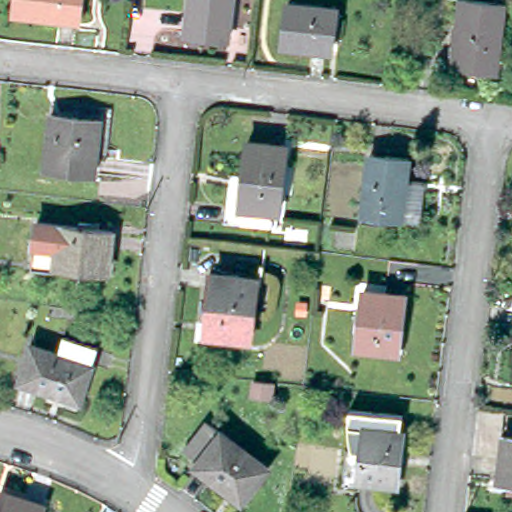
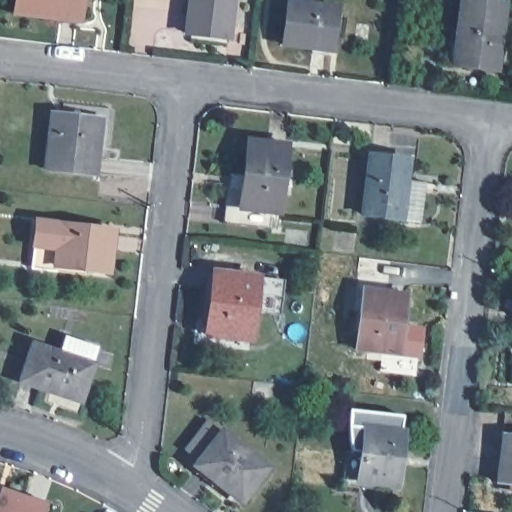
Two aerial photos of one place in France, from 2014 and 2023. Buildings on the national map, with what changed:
unchanged [(80,19),(14,11),(15,0),(82,0),(80,19)]
unchanged [(230,38),(186,32),(189,0),(234,0),(230,38)]
unchanged [(504,3),(496,69),(454,64),(461,0),(483,0),(504,3)]
unchanged [(338,7),(333,49),(282,43),(288,1),(338,7)]
unchanged [(53,112),(112,118),(107,156),(97,155),(95,174),(45,167),(53,112)]
unchanged [(279,212),(273,211),(271,227),(218,220),(225,172),(243,174),(248,139),(287,144),(279,212)]
unchanged [(408,163),(406,184),(425,187),(421,224),(400,221),(397,222),(362,218),(369,159),(408,163)]
unchanged [(49,243),(52,220),(94,225),(95,220),(111,222),(111,227),(128,229),(123,272),(69,265),(46,263),(49,243)]
unchanged [(259,275),(251,340),(205,335),(213,271),(259,275)]
unchanged [(406,294),(398,352),(356,347),(363,289),(406,294)]
unchanged [(98,346),(79,401),(20,381),(32,343),(58,352),(64,334),(98,346)]
unchanged [(253,394),(255,380),(276,382),(274,396),(253,394)]
unchanged [(405,415),(402,431),(405,431),(398,485),(360,480),(359,486),(342,484),(347,447),(352,447),(349,425),(351,409),(405,415)]
unchanged [(208,420),(268,468),(242,501),(196,464),(199,460),(185,448),(208,420)]
unchanged [(508,427),(512,428),(512,489),(496,487),(503,435),(507,436),(508,427)]
unchanged [(45,505),(42,512),(0,512),(0,494),(2,490),(45,505)]

